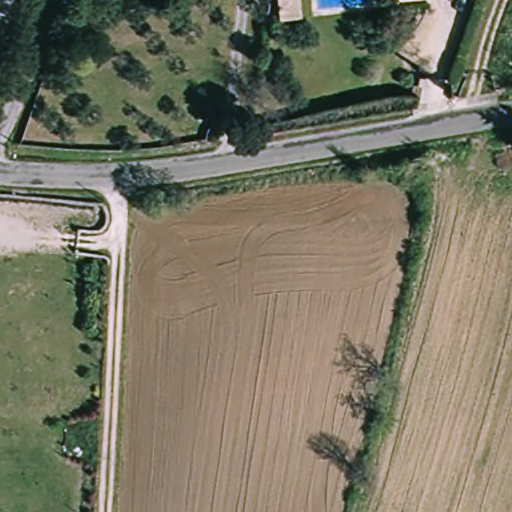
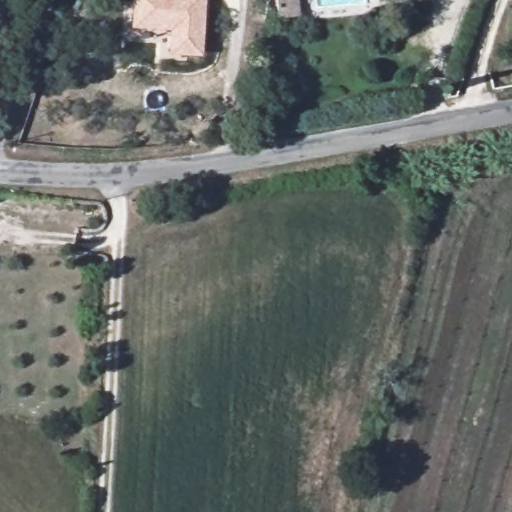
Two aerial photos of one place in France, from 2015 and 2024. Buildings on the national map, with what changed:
new [(169,54),(171,30),(131,28),(133,0),(206,0),(203,56),(169,54)]
new [(300,0),(302,17),(280,19),(277,0),(300,0)]

